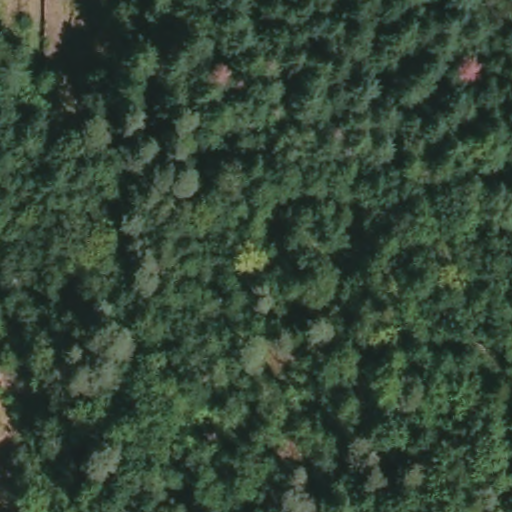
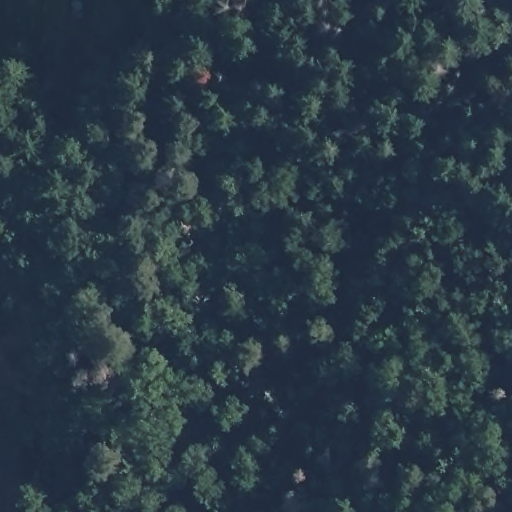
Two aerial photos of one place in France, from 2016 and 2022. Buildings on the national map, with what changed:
unchanged [(103,0),(124,0),(123,4),(103,0)]

